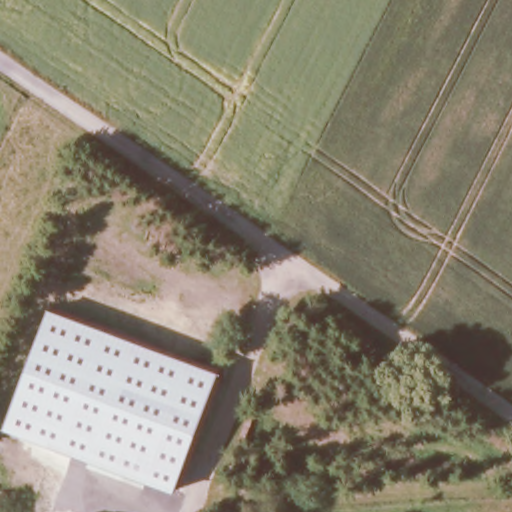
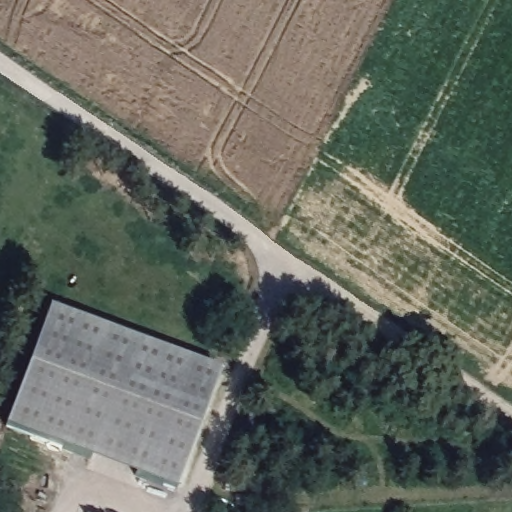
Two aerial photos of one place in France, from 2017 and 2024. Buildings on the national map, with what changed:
unchanged [(219,372),(175,491),(4,427),(49,307),(219,372)]

